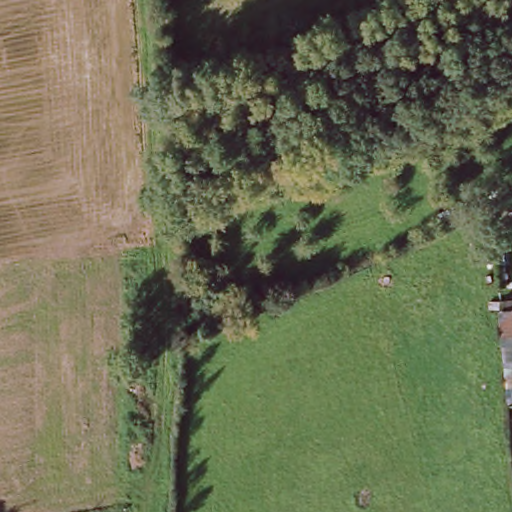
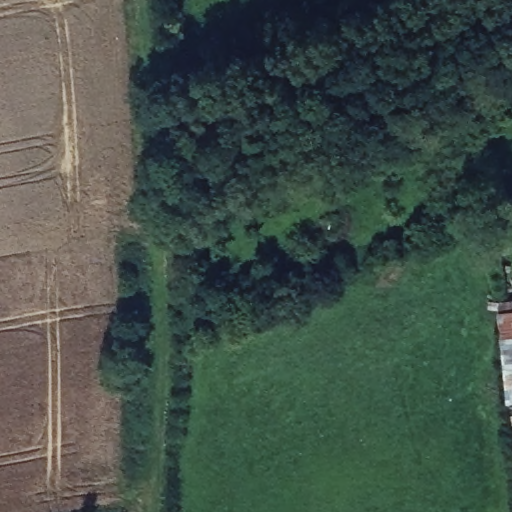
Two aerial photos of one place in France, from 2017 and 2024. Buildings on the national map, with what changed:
unchanged [(497,302),(512,300),(512,403),(507,404),(497,302)]

